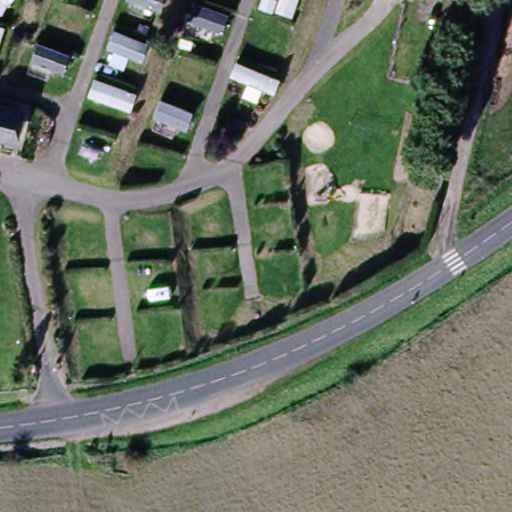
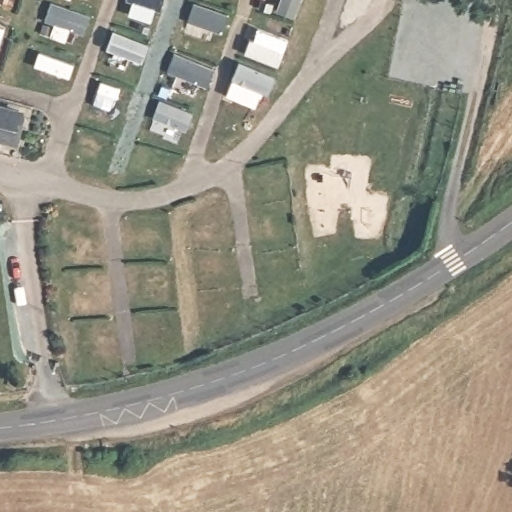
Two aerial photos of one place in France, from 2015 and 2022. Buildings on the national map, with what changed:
unchanged [(23,109),(17,138),(0,134),(0,104),(23,109)]

